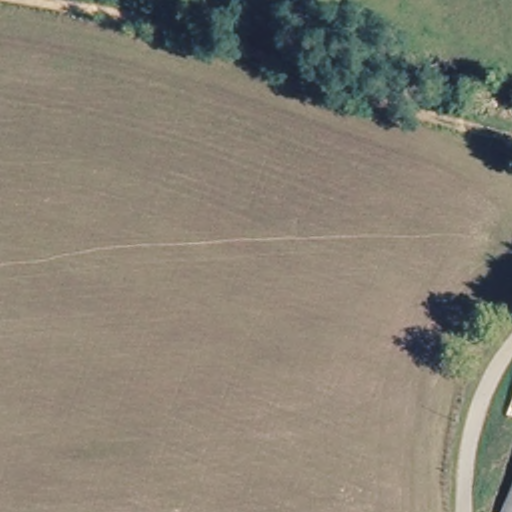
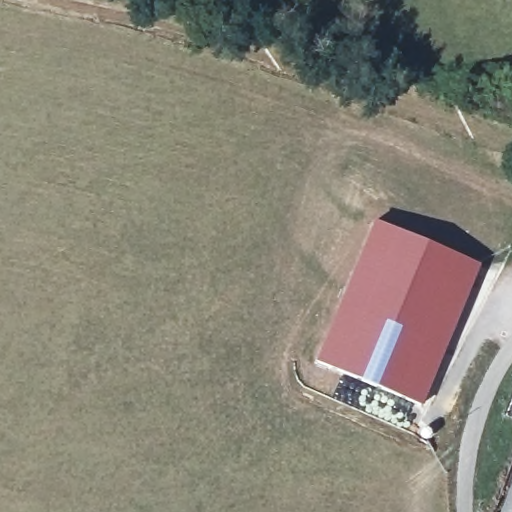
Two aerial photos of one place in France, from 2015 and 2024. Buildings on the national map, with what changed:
new [(315,361),(372,221),(480,265),(422,405),(315,361)]
unchanged [(512,501),(512,512),(508,512),(512,501)]

